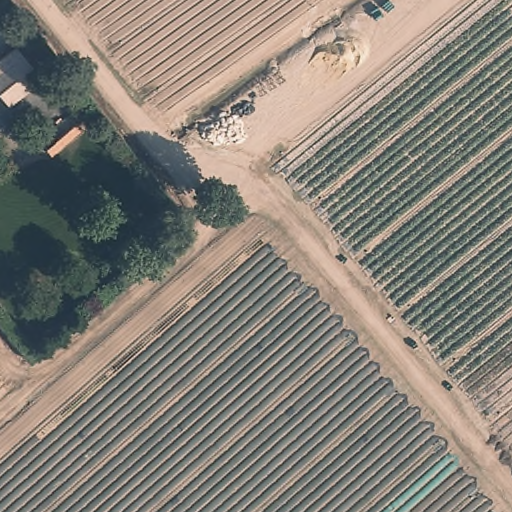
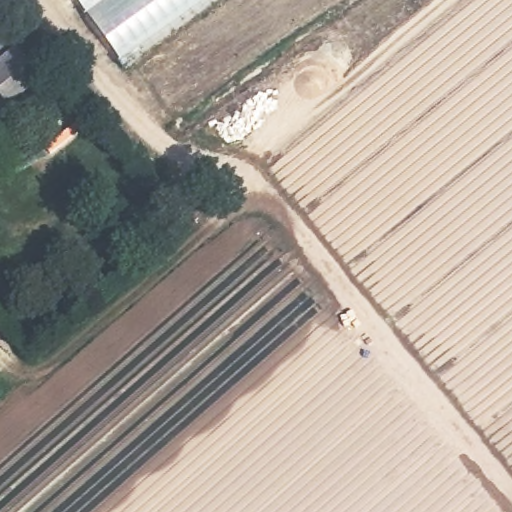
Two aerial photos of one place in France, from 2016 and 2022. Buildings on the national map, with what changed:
new [(74,0),(206,0),(120,62),(74,0)]
unchanged [(0,68),(20,52),(27,60),(46,84),(12,111),(0,96),(0,68)]
unchanged [(58,160),(53,155),(63,146),(86,127),(91,134),(58,160)]

